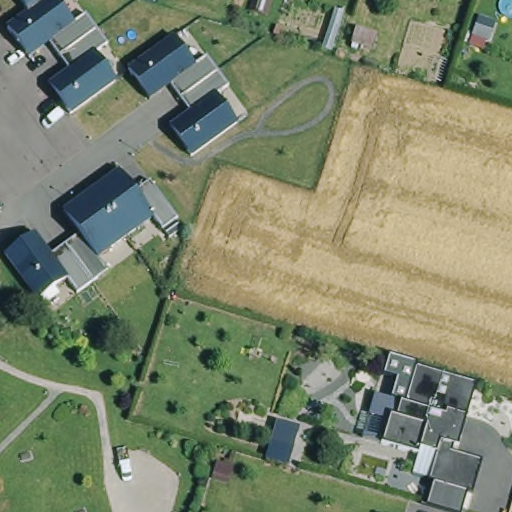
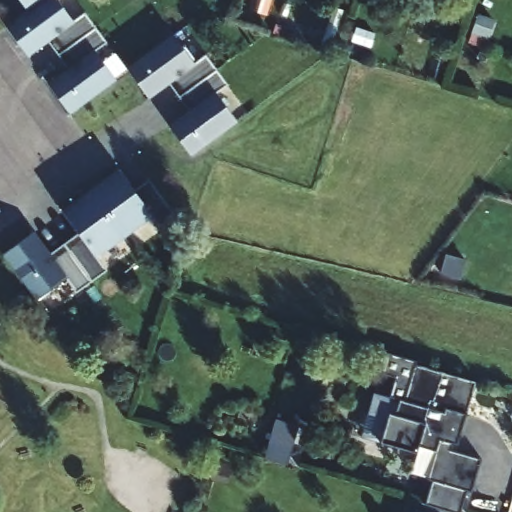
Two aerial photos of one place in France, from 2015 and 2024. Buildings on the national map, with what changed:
unchanged [(73,21),(85,12),(107,41),(94,49),(118,81),(71,116),(47,84),(68,67),(50,43),(29,57),(6,27),(27,11),(18,0),(57,0),(73,21)]
unchanged [(196,63),(209,52),(230,82),(217,92),(239,122),(191,157),(168,124),(188,109),(171,85),(151,99),(128,65),(173,33),(196,63)]
unchanged [(34,232),(51,254),(80,233),(63,209),(118,168),(136,192),(151,180),(179,218),(163,229),(154,216),(99,257),(108,270),(78,292),(68,278),(38,301),(3,255),(34,232)]
unchanged [(0,212),(0,205),(3,209),(0,212)]
unchanged [(383,443),(363,438),(375,393),(392,398),(397,377),(384,373),(389,356),(416,363),(404,399),(400,398),(396,414),(390,412),(389,414),(384,437),(383,443)]
unchanged [(435,475),(430,474),(414,470),(420,448),(384,437),(389,414),(390,412),(396,414),(400,398),(404,399),(416,363),(477,381),(462,434),(459,446),(484,453),(475,487),(474,486),(471,485),(464,510),(428,500),(435,475)]
unchanged [(271,431),(275,415),(297,421),(293,437),(291,443),(286,461),(275,458),(264,455),(269,437),(271,431)]

